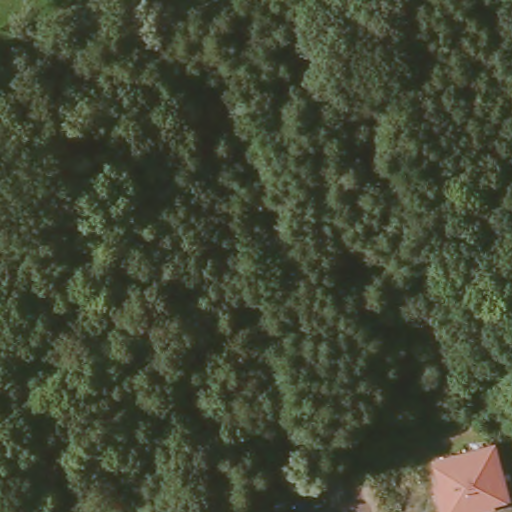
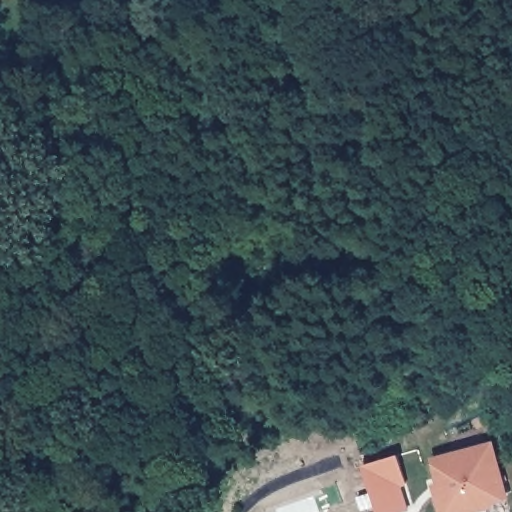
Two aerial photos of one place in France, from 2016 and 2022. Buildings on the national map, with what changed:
unchanged [(436,479),(430,455),(493,438),(510,496),(492,501),(493,506),(469,512),(440,512),(431,481),(436,479)]
new [(407,485),(403,486),(410,512),(408,512),(378,512),(363,466),(400,456),(407,485)]

